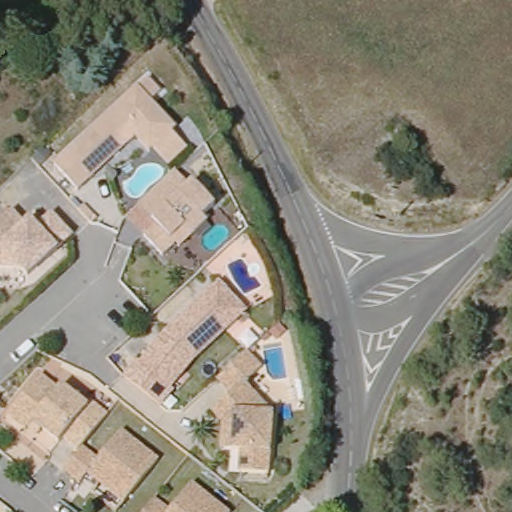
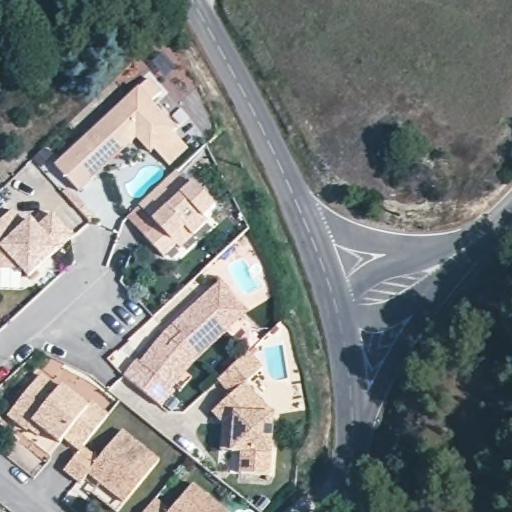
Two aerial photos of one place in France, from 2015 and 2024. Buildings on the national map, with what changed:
unchanged [(169,168),(154,151),(150,155),(137,140),(79,192),(55,166),(149,80),(162,94),(152,103),(177,130),(173,134),(188,151),(169,168)]
unchanged [(177,246),(164,258),(145,237),(157,226),(139,206),(176,172),(190,187),(194,183),(216,207),(204,218),(208,223),(192,237),(180,249),(177,246)]
unchanged [(22,271),(0,269),(0,221),(12,211),(25,226),(30,221),(37,228),(52,214),(73,237),(28,278),(22,271)]
unchanged [(172,389),(174,391),(160,407),(156,404),(123,377),(137,360),(140,363),(158,341),(164,334),(172,326),(220,282),(247,313),(195,361),(172,389)]
unchanged [(218,381),(248,353),(263,370),(246,385),(274,416),(270,476),(240,474),(241,453),(232,453),(222,452),(223,425),(212,412),(223,403),(231,395),(218,381)]
unchanged [(29,429),(27,432),(7,416),(40,375),(58,390),(62,386),(87,407),(92,402),(107,415),(107,416),(82,447),(79,451),(64,439),(60,445),(42,431),(38,437),(29,429)]
unchanged [(125,504),(88,474),(80,484),(63,471),(79,451),(82,447),(98,460),(122,430),(160,460),(125,504)]
unchanged [(155,498),(171,511),(193,484),(229,512),(144,512),(155,498)]

